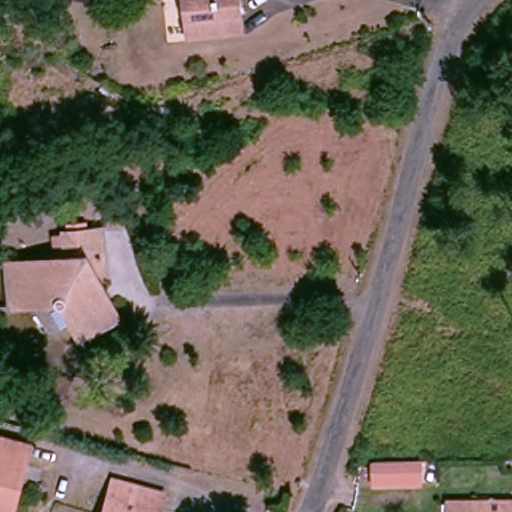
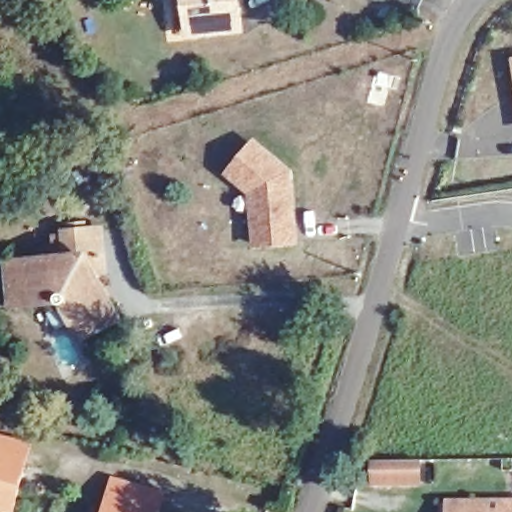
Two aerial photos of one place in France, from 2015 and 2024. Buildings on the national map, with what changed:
unchanged [(193,37),(189,0),(242,0),(246,31),(193,37)]
new [(512,57),(512,74),(510,58),(512,57)]
new [(293,171),(300,244),(253,247),(249,195),(224,176),(254,139),(293,171)]
unchanged [(64,255),(61,229),(110,225),(114,250),(96,252),(128,315),(90,335),(70,297),(21,301),(17,259),(64,255)]
unchanged [(12,512),(7,512),(0,510),(0,438),(31,446),(12,512)]
unchanged [(415,461),(415,483),(370,484),(370,461),(415,461)]
unchanged [(162,494),(157,512),(105,512),(114,482),(162,494)]
unchanged [(444,502),(512,502),(512,512),(444,512),(444,502)]

